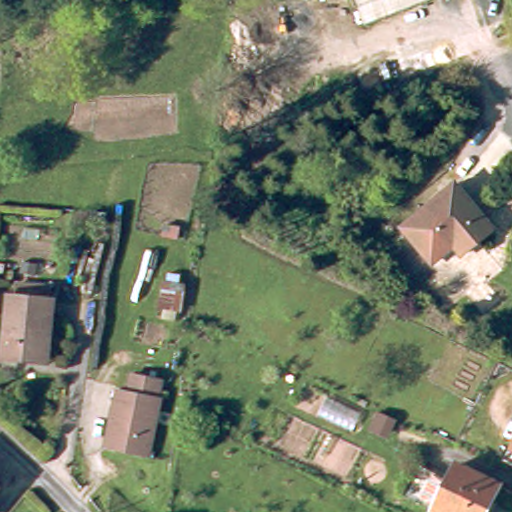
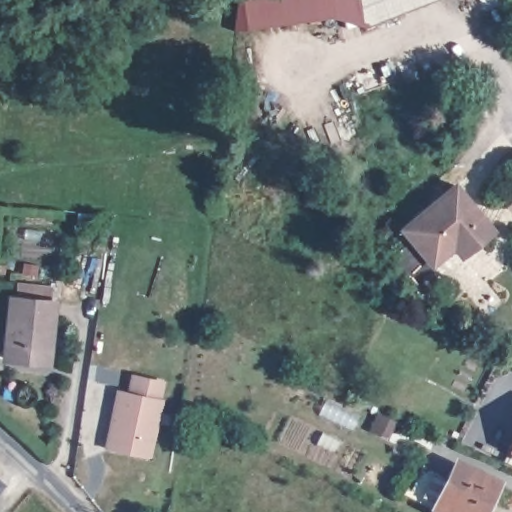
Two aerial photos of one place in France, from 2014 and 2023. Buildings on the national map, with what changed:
new [(358,11),(235,30),(238,0),(355,0),(358,11)]
unchanged [(365,26),(356,0),(438,0),(365,26)]
unchanged [(457,252),(437,268),(408,233),(460,191),(498,237),(480,251),(466,262),(457,252)]
unchanged [(20,291),(53,295),(52,306),(58,306),(52,368),(10,365),(16,302),(18,302),(20,291)]
unchanged [(133,398),(136,381),(165,386),(162,403),(165,404),(155,462),(112,455),(123,397),(133,398)]
unchanged [(508,490),(498,512),(436,512),(418,503),(432,471),(460,483),(467,470),(508,490)]
unchanged [(0,499),(0,490),(5,494),(0,499)]

